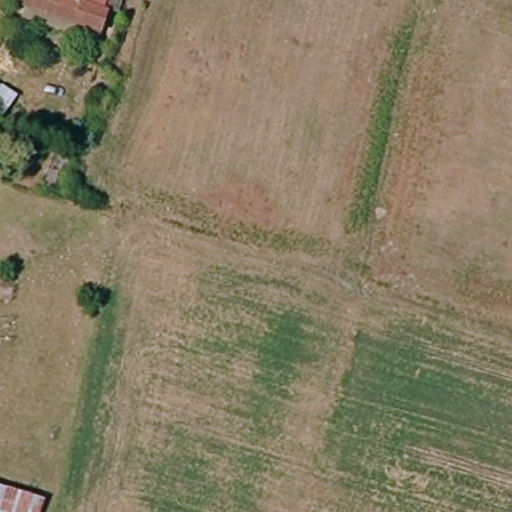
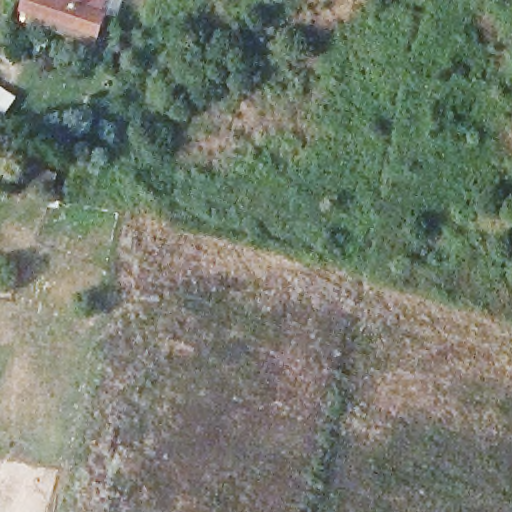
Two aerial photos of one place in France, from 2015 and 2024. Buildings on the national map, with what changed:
unchanged [(101,35),(31,6),(33,0),(114,0),(101,35)]
unchanged [(23,98),(7,129),(0,124),(0,84),(23,98)]
new [(42,512),(0,512),(0,486),(45,501),(42,512)]

